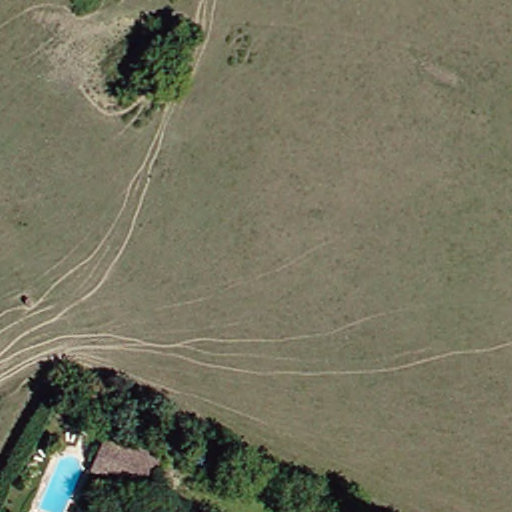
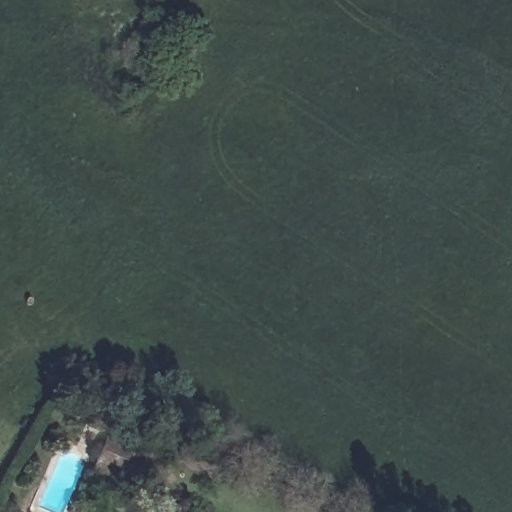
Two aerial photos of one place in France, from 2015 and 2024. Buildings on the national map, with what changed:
unchanged [(146,487),(95,471),(110,427),(163,447),(146,487)]

